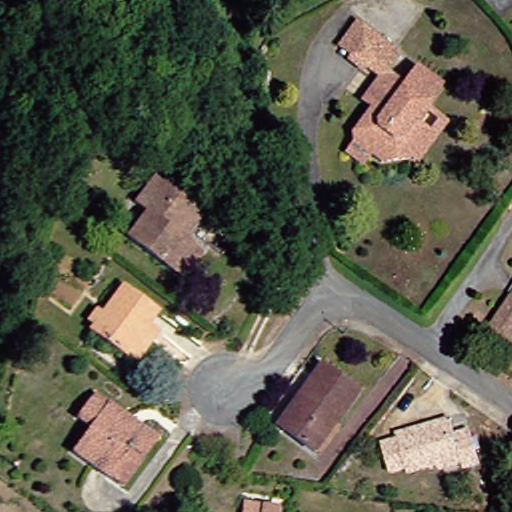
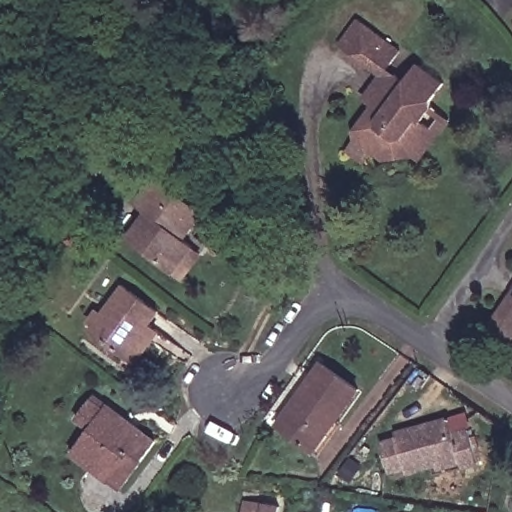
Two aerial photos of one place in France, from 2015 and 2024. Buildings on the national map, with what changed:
unchanged [(354,163),(341,155),(350,144),(348,134),(366,109),(358,102),(374,79),(362,72),(357,73),(344,60),(346,54),(337,46),(356,21),(397,53),(386,68),(402,80),(414,65),(439,83),(429,101),(434,104),(427,113),(446,124),(419,161),(354,163)]
unchanged [(176,281),(169,274),(126,238),(145,213),(134,203),(155,176),(197,214),(177,240),(188,249),(196,255),(176,281)]
unchanged [(132,365),(125,358),(92,330),(126,286),(157,314),(144,333),(152,340),(132,365)]
unchanged [(507,294),(512,298),(512,340),(488,323),(500,305),(507,294)]
unchanged [(325,455),(318,449),(284,424),(281,422),(299,397),(322,362),(357,390),(337,420),(344,426),(325,455)]
unchanged [(122,494),(60,446),(96,397),(156,447),(122,494)]
unchanged [(475,471),(470,458),(418,474),(417,470),(404,474),(395,445),(408,441),(407,437),(460,421),(465,437),(481,432),(491,466),(475,471)]
unchanged [(241,512),(242,504),(277,508),(276,512),(241,512)]

